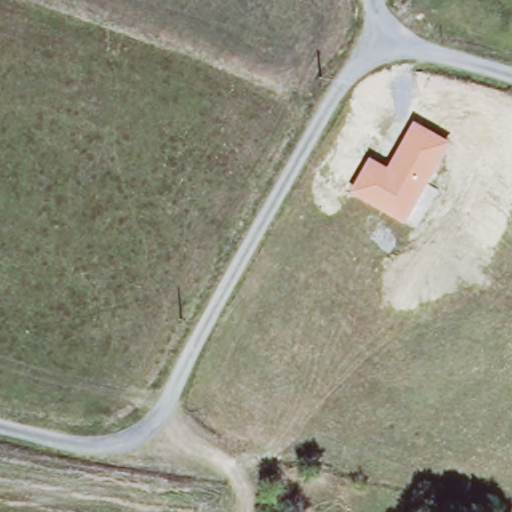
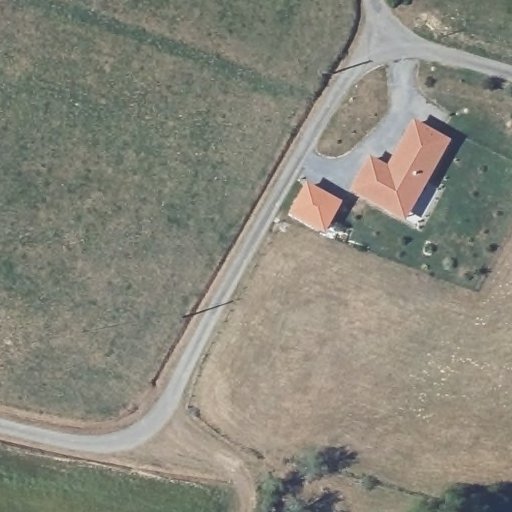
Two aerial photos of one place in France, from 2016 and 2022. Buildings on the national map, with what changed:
unchanged [(454,140),(408,220),(352,190),(370,155),(390,167),(414,123),(454,140)]
new [(307,184),(338,200),(325,227),(293,210),(307,184)]

